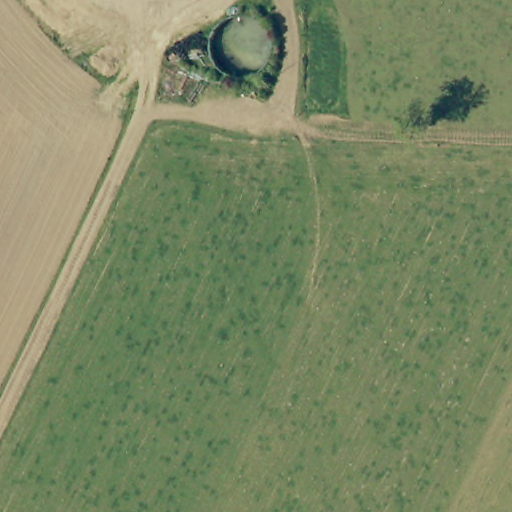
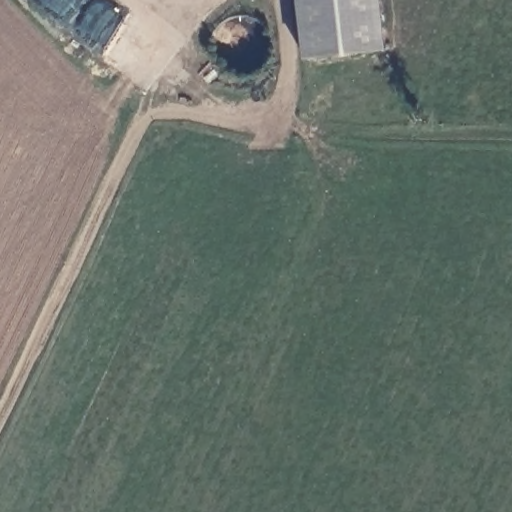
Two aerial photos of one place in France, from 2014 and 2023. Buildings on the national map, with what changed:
new [(380,0),(386,51),(304,59),(297,0),(380,0)]

